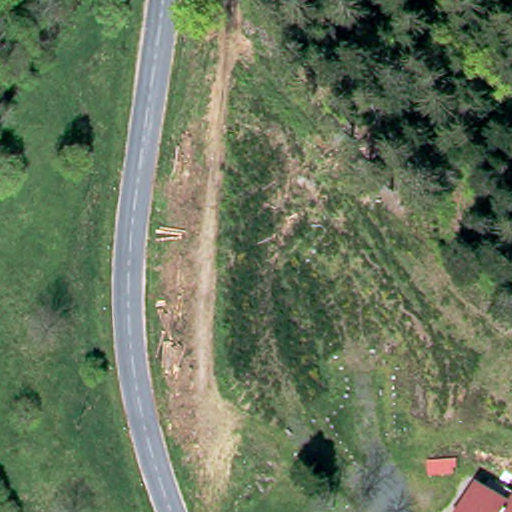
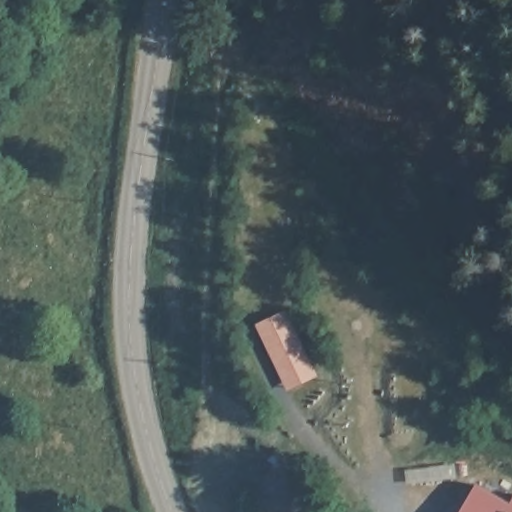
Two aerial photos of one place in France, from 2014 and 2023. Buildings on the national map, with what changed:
new [(319,376),(287,391),(256,325),(287,310),(319,376)]
unchanged [(472,486),(507,507),(512,501),(512,512),(456,512),(472,486)]

